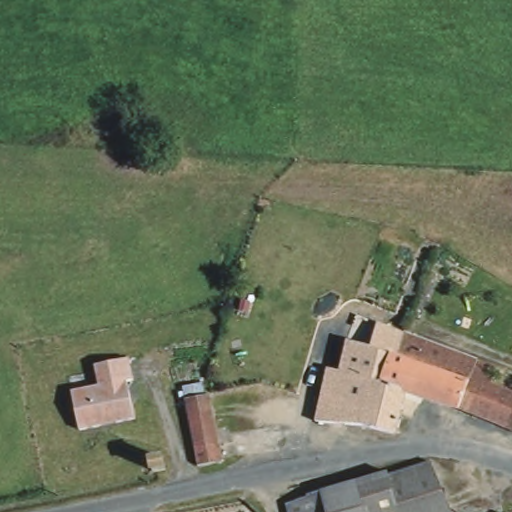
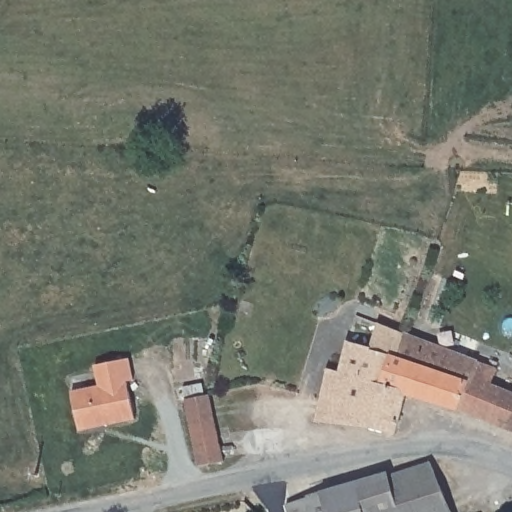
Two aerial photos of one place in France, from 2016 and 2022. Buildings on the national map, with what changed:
unchanged [(406,393),(397,435),(392,436),(363,427),(317,423),(328,370),(341,373),(347,341),(357,316),(463,357),(457,377),(467,381),(457,408),(433,402),(415,396),(406,393)]
unchanged [(457,377),(463,357),(475,361),(497,370),(492,387),(512,395),(512,430),(468,412),(457,408),(467,381),(457,377)]
unchanged [(72,392),(100,387),(96,366),(130,360),(134,382),(127,382),(135,421),(79,431),(72,392)]
unchanged [(207,397),(212,396),(224,463),(206,467),(200,468),(187,400),(207,397)]
unchanged [(433,465),(446,496),(401,510),(390,477),(433,465)]
unchanged [(388,473),(390,477),(401,510),(446,496),(452,512),(364,512),(355,483),(388,473)]
unchanged [(355,483),(364,512),(290,512),(287,505),(355,483)]

